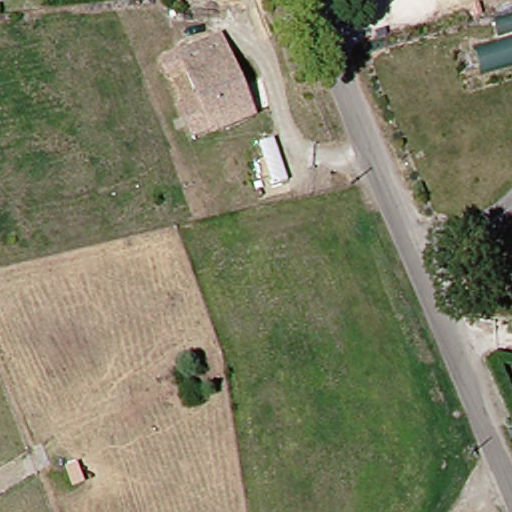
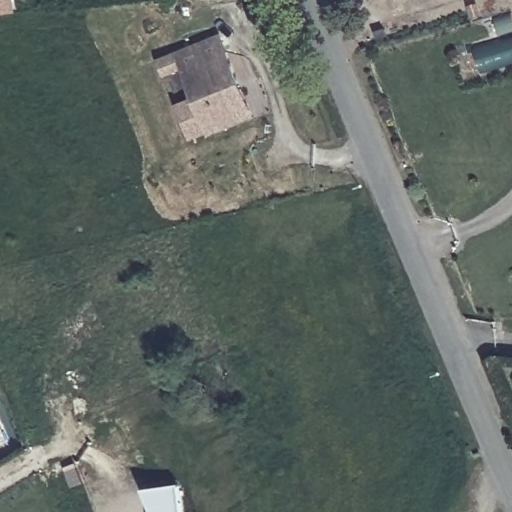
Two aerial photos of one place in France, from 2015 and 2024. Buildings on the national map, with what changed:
new [(13,9),(0,11),(0,0),(12,0),(13,9)]
unchanged [(468,25),(465,15),(476,11),(479,22),(468,25)]
unchanged [(249,110),(207,129),(174,55),(215,35),(249,110)]
unchanged [(512,67),(483,75),(473,47),(512,35),(512,67)]
new [(178,512),(149,512),(141,492),(174,487),(178,512)]

